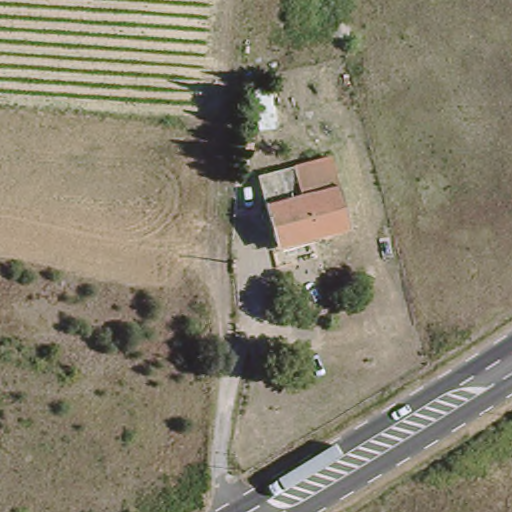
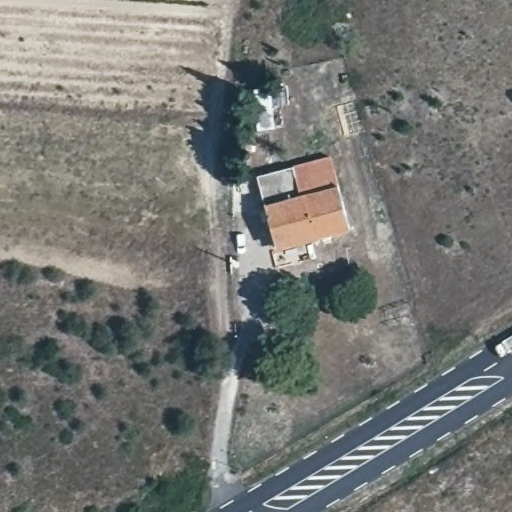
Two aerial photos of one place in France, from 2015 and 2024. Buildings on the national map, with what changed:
unchanged [(326,157),(335,187),(265,208),(257,176),(326,157)]
unchanged [(335,187),(345,231),(274,251),(265,208),(335,187)]

